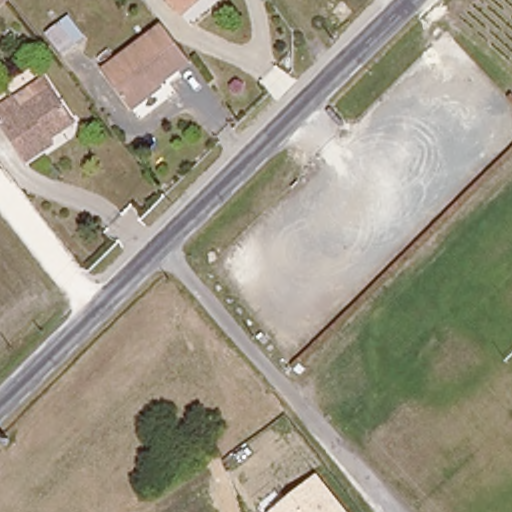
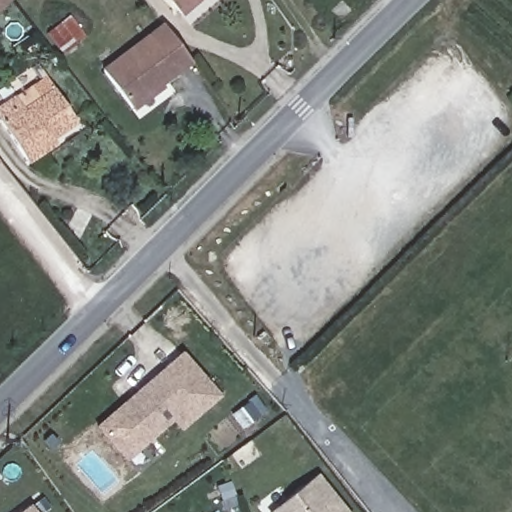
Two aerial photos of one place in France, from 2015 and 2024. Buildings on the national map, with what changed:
unchanged [(0,0),(2,0),(0,2),(0,0)]
unchanged [(192,4),(182,12),(170,0),(203,0),(204,2),(197,9),(192,4)]
unchanged [(61,57),(43,31),(71,10),(91,36),(61,57)]
unchanged [(192,62),(159,85),(161,88),(134,109),(103,70),(163,24),(192,62)]
unchanged [(55,142),(27,162),(0,121),(0,107),(15,97),(24,110),(40,98),(33,87),(46,77),(54,89),(74,119),(50,135),(55,142)]
new [(183,356),(202,375),(220,396),(183,428),(175,419),(129,460),(100,427),(164,372),(183,356)]
unchanged [(317,473),(348,512),(271,512),(317,473)]
new [(39,512),(24,512),(34,505),(39,512)]

